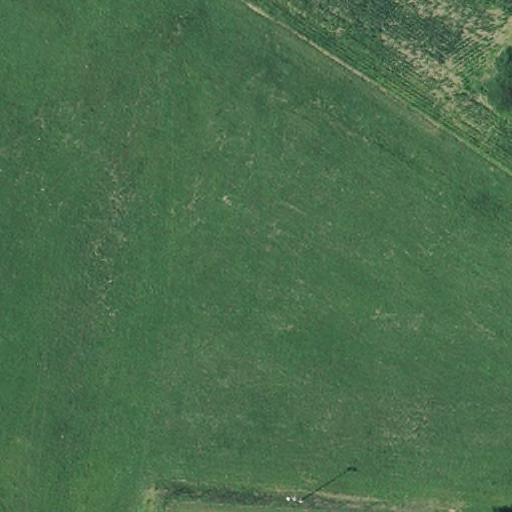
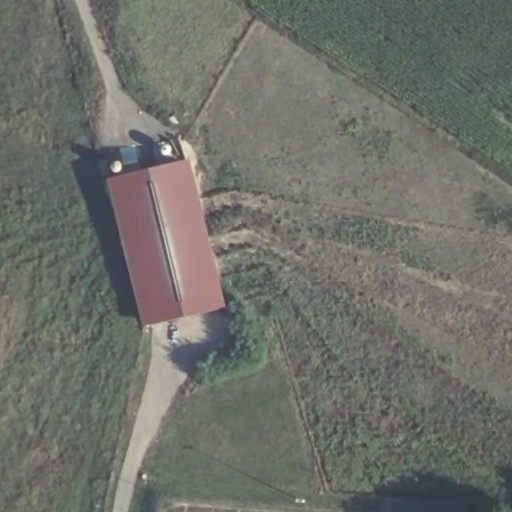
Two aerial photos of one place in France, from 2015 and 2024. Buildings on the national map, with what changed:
new [(188,158),(225,307),(140,326),(106,176),(188,158)]

